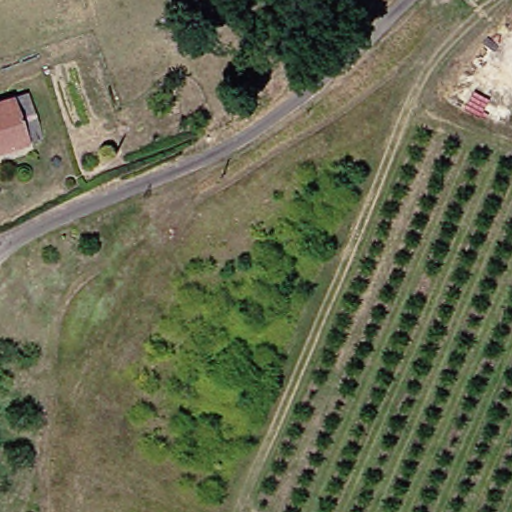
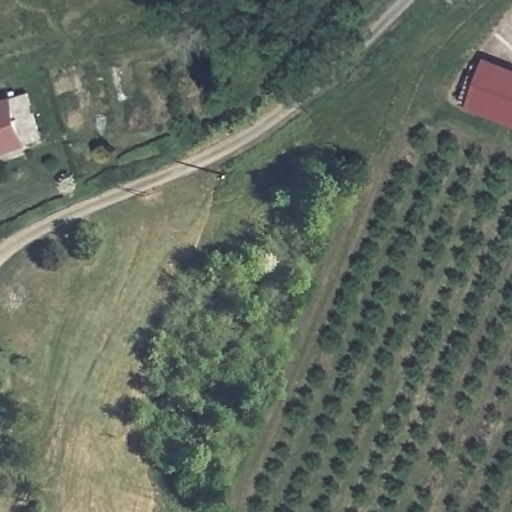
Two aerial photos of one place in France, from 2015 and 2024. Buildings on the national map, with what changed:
new [(483,59),(512,69),(512,125),(466,108),(483,59)]
unchanged [(44,127),(38,130),(43,143),(0,157),(0,106),(31,95),(44,127)]

